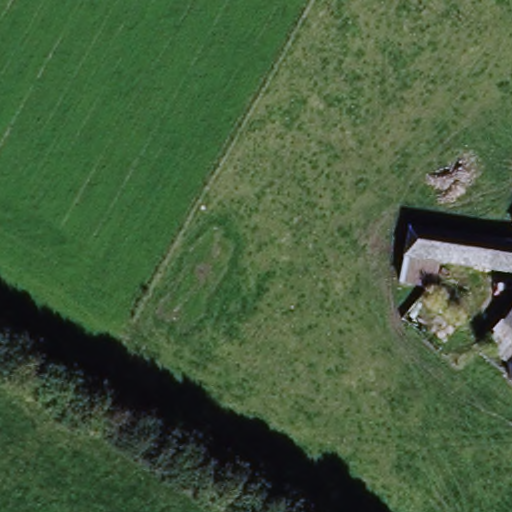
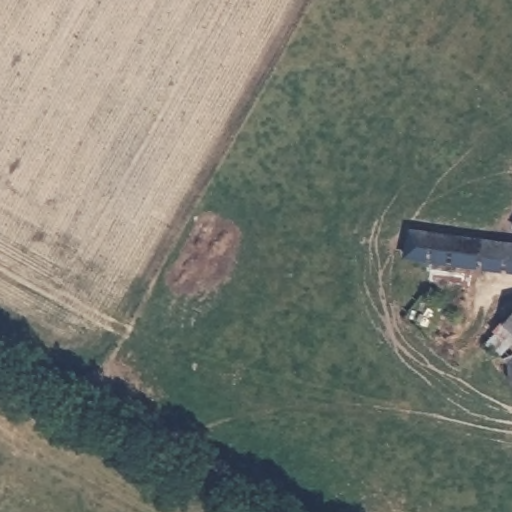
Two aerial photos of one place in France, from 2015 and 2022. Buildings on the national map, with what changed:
unchanged [(440,266),(437,292),(400,286),(409,231),(512,244),(512,278),(440,266)]
unchanged [(507,376),(507,365),(482,345),(512,314),(512,385),(507,376)]

